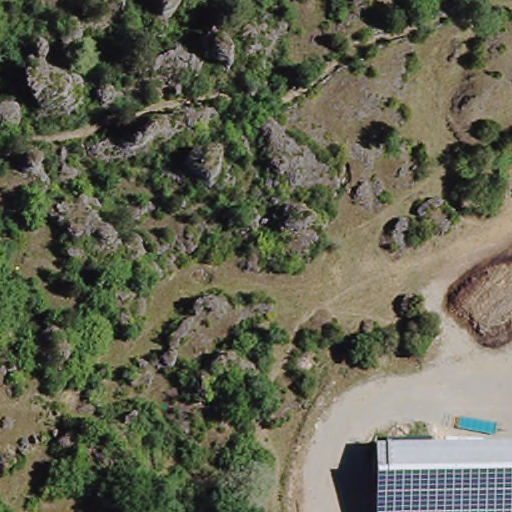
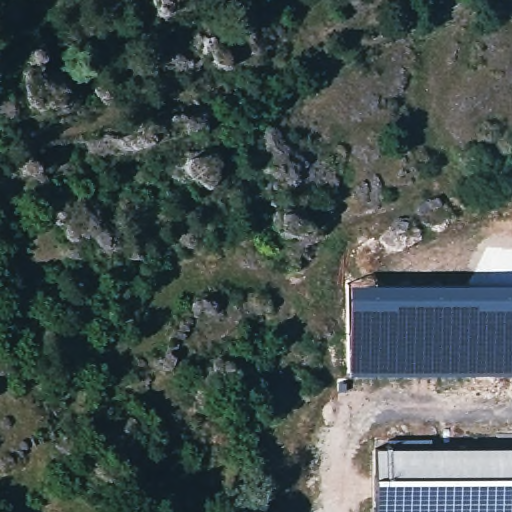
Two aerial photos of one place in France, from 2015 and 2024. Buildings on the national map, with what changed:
new [(348,282),(512,278),(512,373),(457,375),(347,375),(346,343),(348,282)]
unchanged [(512,445),(512,512),(375,512),(375,445),(512,445)]

